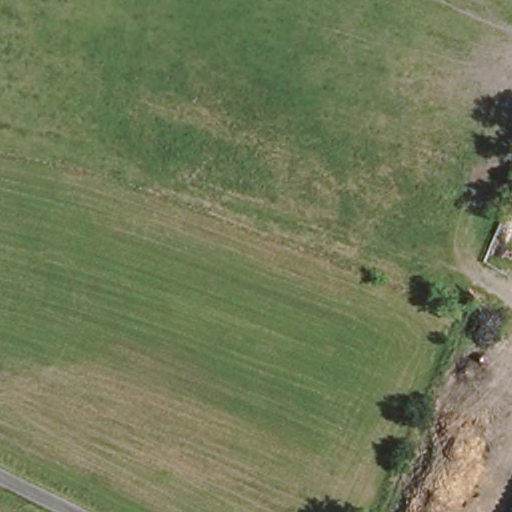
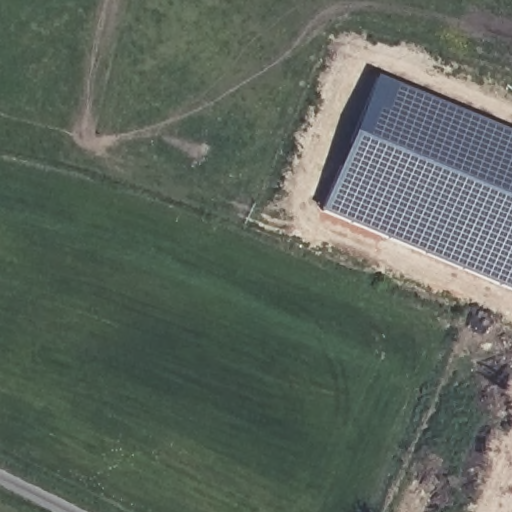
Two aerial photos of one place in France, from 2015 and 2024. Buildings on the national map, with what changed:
new [(318,210),(374,75),(512,133),(512,291),(318,210)]

